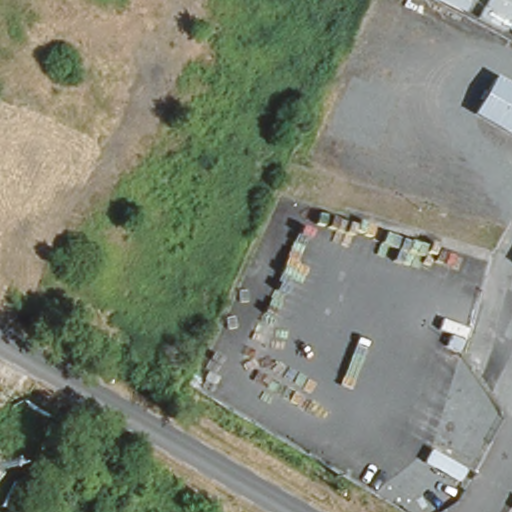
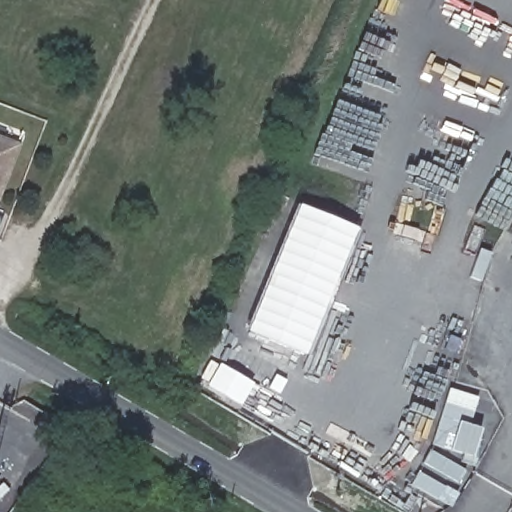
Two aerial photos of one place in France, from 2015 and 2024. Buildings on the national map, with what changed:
demolished [(471,114),(495,74),(512,84),(512,137),(471,114)]
new [(0,136),(21,143),(0,197),(0,136)]
new [(299,203),(357,227),(306,353),(247,329),(299,203)]
new [(207,381),(200,376),(207,363),(250,389),(236,412),(202,391),(207,381)]
new [(482,428),(474,455),(432,441),(450,388),(479,397),(471,424),(482,428)]

